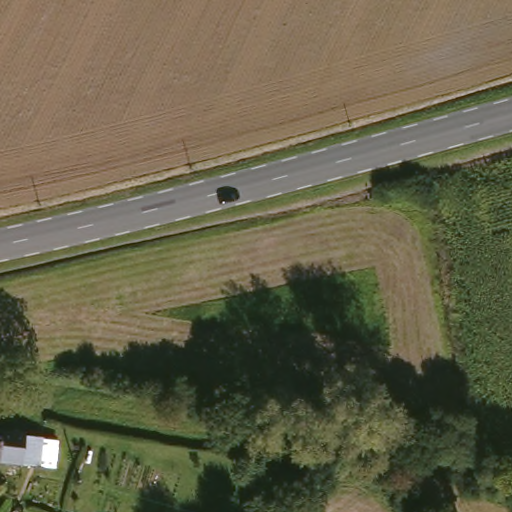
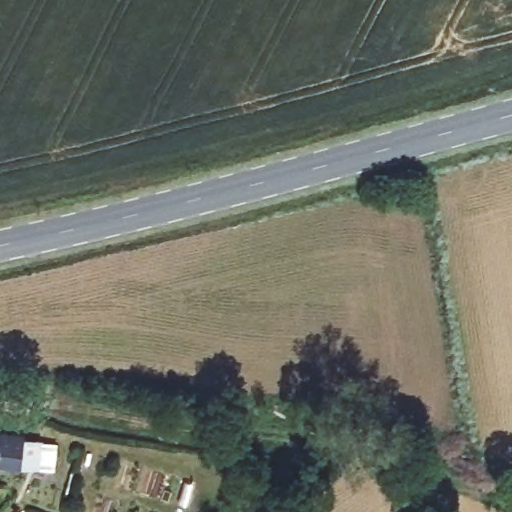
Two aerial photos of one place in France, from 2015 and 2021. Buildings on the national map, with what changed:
unchanged [(21,473),(0,470),(0,436),(29,441),(27,444),(45,447),(36,476),(21,473)]

